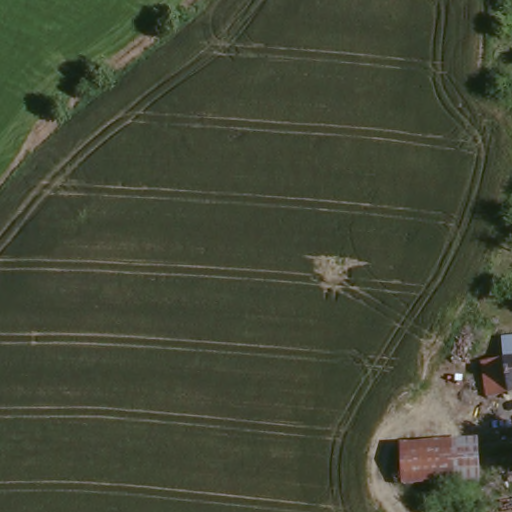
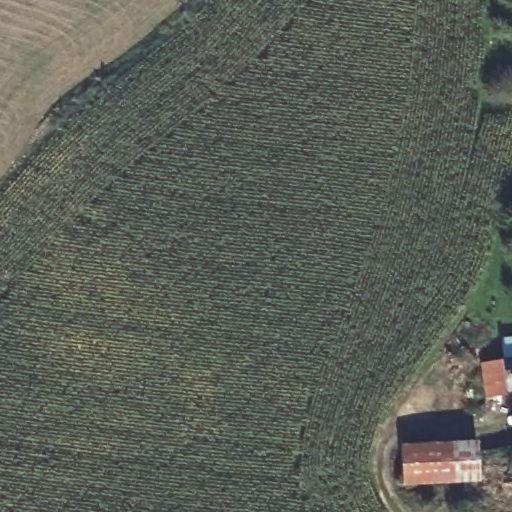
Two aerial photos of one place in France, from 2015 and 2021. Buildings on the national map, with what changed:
unchanged [(484,355),(505,353),(502,330),(512,330),(512,390),(507,390),(487,393),(484,355)]
unchanged [(480,441),(483,480),(407,485),(405,446),(480,441)]

